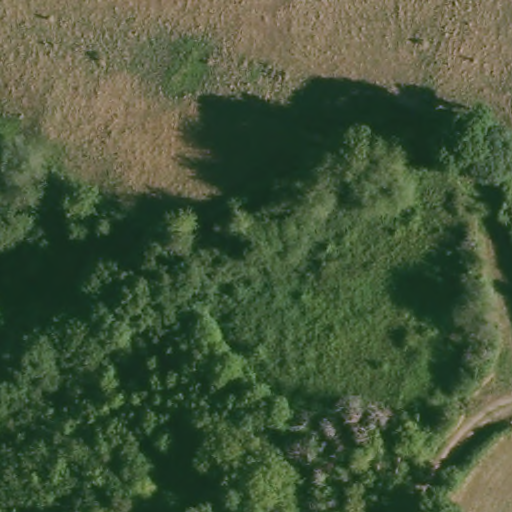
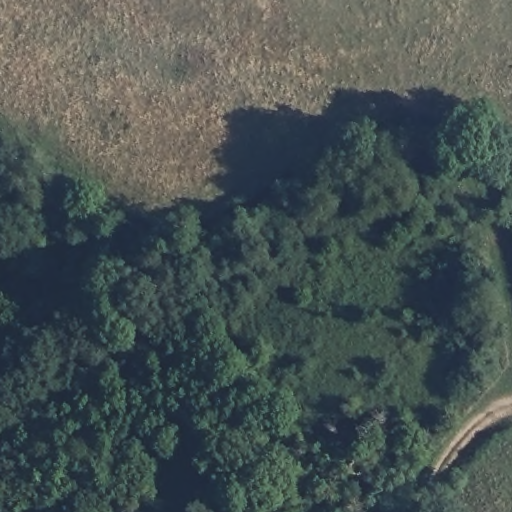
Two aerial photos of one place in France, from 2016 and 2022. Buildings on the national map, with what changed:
[]

